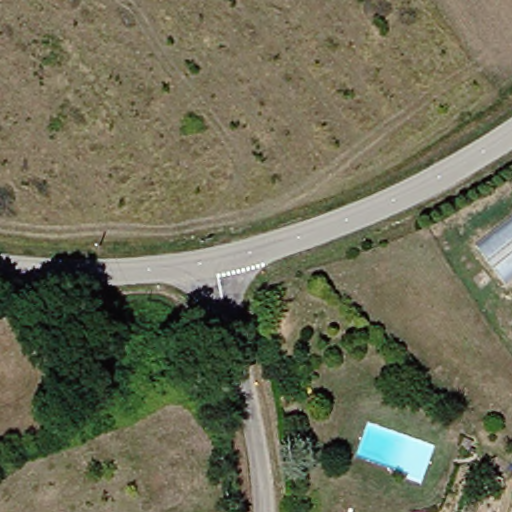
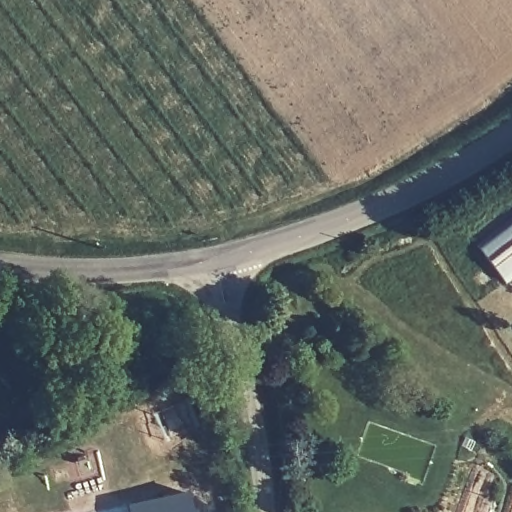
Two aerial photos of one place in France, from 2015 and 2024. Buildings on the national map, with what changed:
unchanged [(481,254),(512,230),(512,280),(505,286),(481,254)]
new [(187,492),(192,512),(128,512),(127,506),(187,492)]

